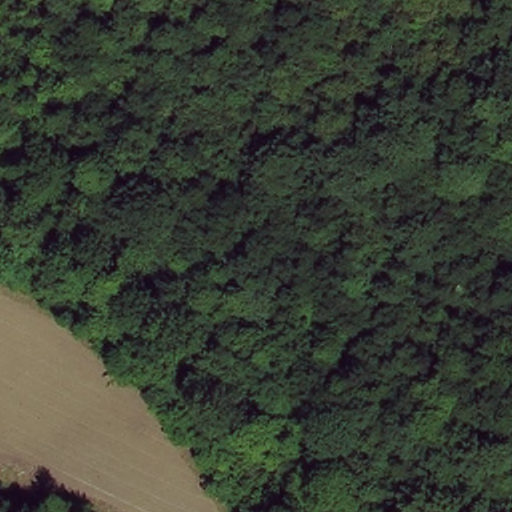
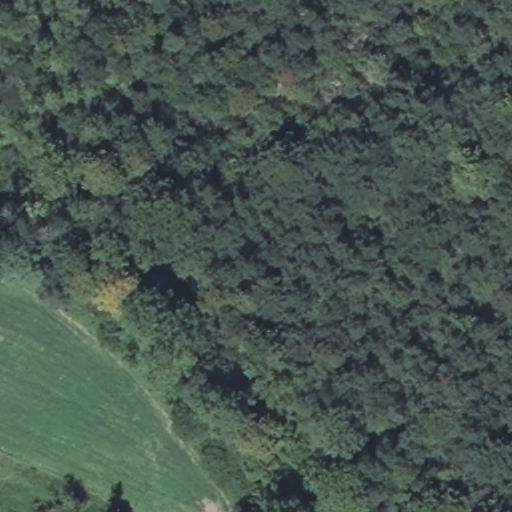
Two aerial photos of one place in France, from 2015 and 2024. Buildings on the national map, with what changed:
[]

